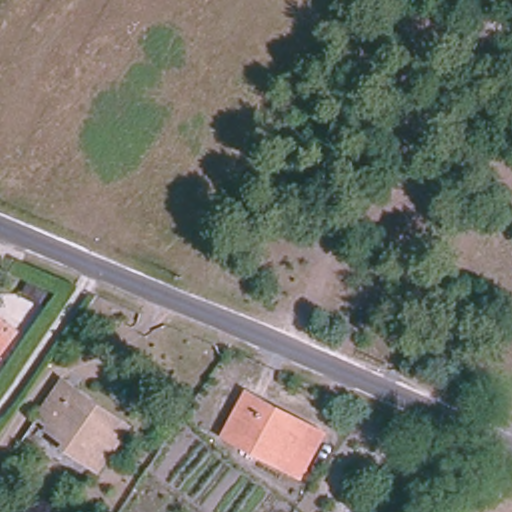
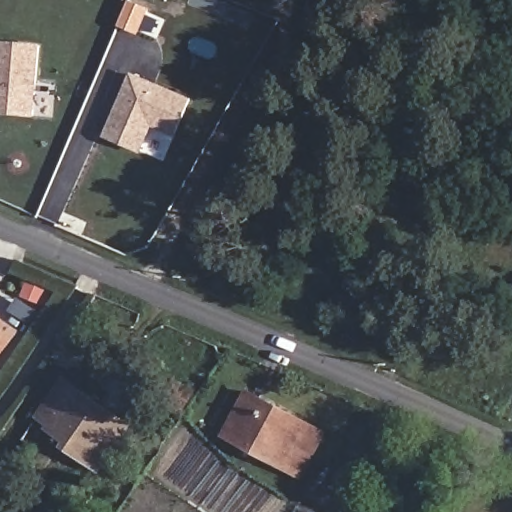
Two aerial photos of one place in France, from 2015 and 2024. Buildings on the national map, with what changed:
new [(139,35),(118,26),(129,0),(151,8),(139,35)]
new [(0,114),(0,40),(42,44),(35,117),(0,114)]
new [(152,127),(141,154),(102,137),(131,72),(193,98),(176,138),(152,127)]
unchanged [(1,334),(14,345),(0,363),(0,319),(7,322),(1,334)]
unchanged [(62,451),(67,444),(49,432),(54,425),(41,417),(67,377),(100,399),(134,421),(125,435),(97,475),(62,451)]
unchanged [(280,468),(221,434),(245,391),(325,434),(312,457),(299,479),(280,468)]

